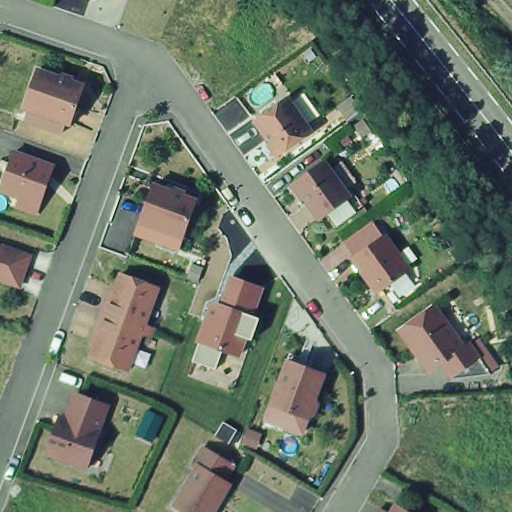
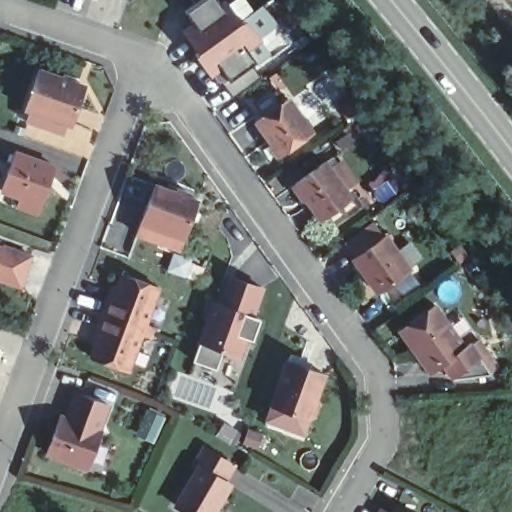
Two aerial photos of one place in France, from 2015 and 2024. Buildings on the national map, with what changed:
new [(193,22),(187,12),(203,0),(216,0),(219,4),(223,0),(228,0),(262,41),(247,52),(255,62),(251,64),(260,76),(232,97),(223,85),(220,87),(212,76),(181,31),(193,22)]
unchanged [(29,114),(32,103),(27,102),(41,64),(87,79),(74,117),(69,116),(66,127),(29,114)]
unchanged [(316,131),(284,154),(259,120),(292,97),(316,131)]
unchanged [(58,166),(41,213),(21,206),(24,197),(5,190),(19,151),(58,166)]
unchanged [(334,225),(326,214),(319,219),(293,183),(324,161),(350,197),(357,208),(334,225)]
unchanged [(196,210),(182,247),(159,239),(160,237),(141,230),(154,194),(196,210)]
unchanged [(385,232),(410,267),(376,291),(351,257),(385,232)]
unchanged [(34,255),(24,286),(0,277),(0,245),(5,247),(34,255)]
unchanged [(200,345),(197,343),(212,301),(221,304),(231,276),(265,288),(256,317),(257,318),(260,319),(252,341),(246,339),(239,359),(222,354),(216,370),(194,362),(200,345)]
unchanged [(107,301),(112,302),(121,277),(159,290),(145,327),(155,330),(152,336),(101,317),(107,301)]
unchanged [(490,374),(452,379),(441,364),(428,373),(397,330),(434,305),(464,347),(469,343),(490,374)]
unchanged [(152,336),(151,341),(141,337),(127,374),(90,360),(100,334),(96,333),(101,317),(152,336)]
unchanged [(267,421),(273,407),(288,365),(289,362),(310,370),(329,377),(321,400),(324,406),(319,418),(312,421),(307,435),(267,421)]
unchanged [(107,409),(97,435),(100,436),(87,472),(45,457),(59,421),(70,425),(80,399),(107,409)]
new [(166,418),(155,445),(137,439),(149,411),(166,418)]
unchanged [(226,483),(230,485),(214,512),(187,512),(177,506),(200,468),(195,466),(205,449),(235,467),(226,483)]
unchanged [(408,512),(395,512),(399,507),(408,512)]
unchanged [(385,512),(382,512),(383,511),(385,512)]

